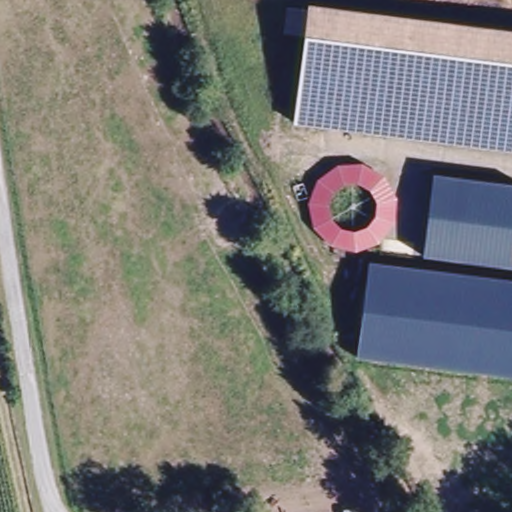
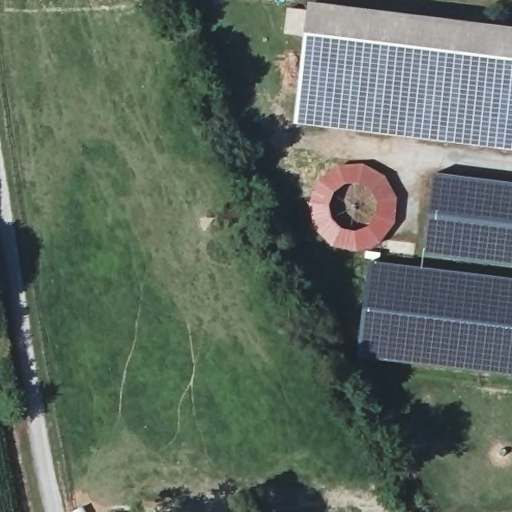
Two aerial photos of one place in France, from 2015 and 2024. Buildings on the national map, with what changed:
unchanged [(512,35),(512,150),(312,125),(322,41),(303,39),(306,16),(326,18),(326,12),(512,35)]
unchanged [(317,179),(335,165),(363,163),(386,176),(397,199),(395,223),(378,244),(355,253),(330,245),(313,228),(308,204),(317,179)]
unchanged [(512,184),(512,268),(423,257),(433,174),(512,184)]
unchanged [(356,358),(368,262),(512,280),(512,377),(356,358)]

